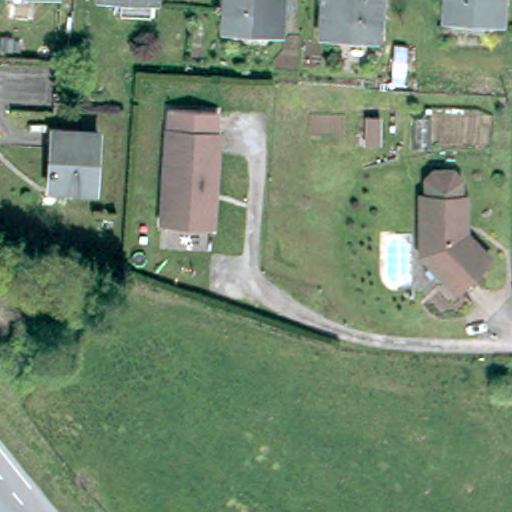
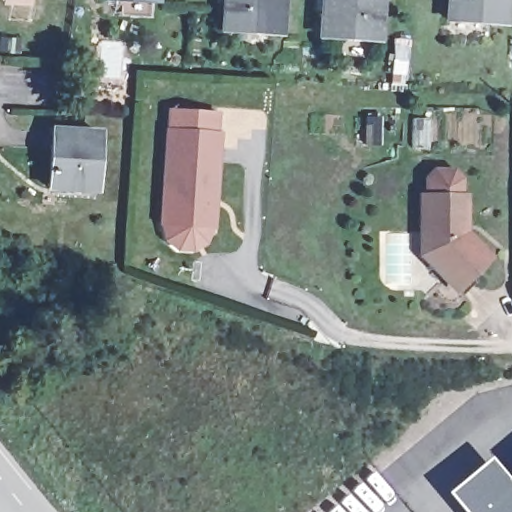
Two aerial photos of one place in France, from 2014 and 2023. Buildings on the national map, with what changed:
unchanged [(276,37),(218,33),(220,0),(278,0),(276,37)]
unchanged [(380,38),(320,34),(322,0),(381,0),(380,38)]
unchanged [(505,22),(447,19),(449,0),(507,0),(505,22)]
unchanged [(383,117),(380,146),(365,145),(367,116),(383,117)]
unchanged [(162,138),(164,118),(211,121),(210,141),(213,142),(211,172),(205,172),(202,217),(208,218),(207,239),(154,235),(161,138),(162,138)]
unchanged [(97,132),(94,190),(50,187),(53,129),(97,132)]
unchanged [(456,297),(444,285),(415,254),(416,195),(423,195),(425,177),(432,171),(445,172),(452,180),(451,196),(460,196),(460,222),(460,231),(461,232),(486,256),(472,272),(477,277),(456,297)]
new [(487,457),(510,485),(512,484),(512,512),(461,512),(445,492),(487,457)]

